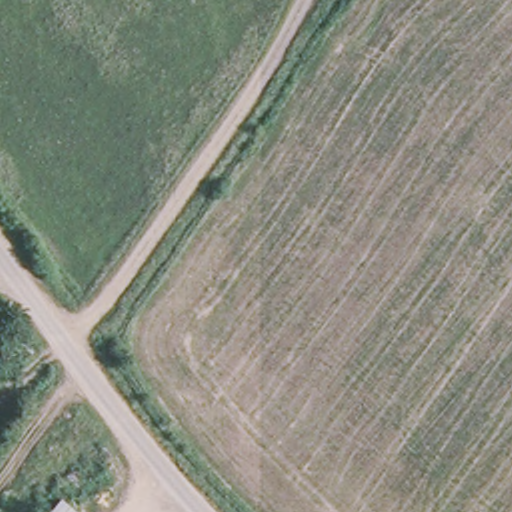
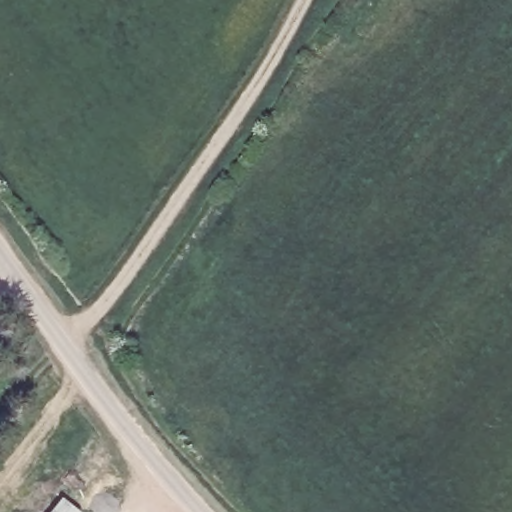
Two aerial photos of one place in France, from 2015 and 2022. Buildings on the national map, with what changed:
unchanged [(74,512),(45,512),(55,500),(74,512)]

